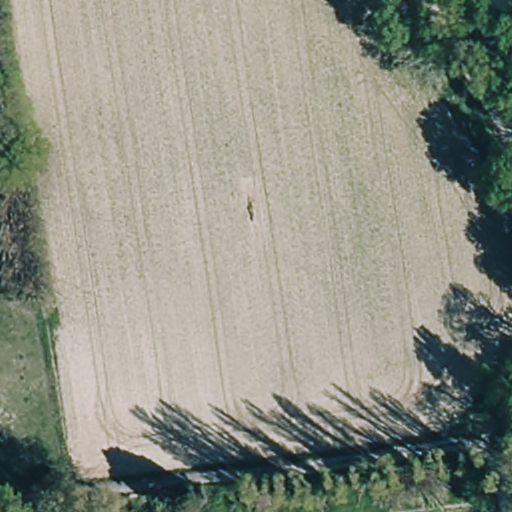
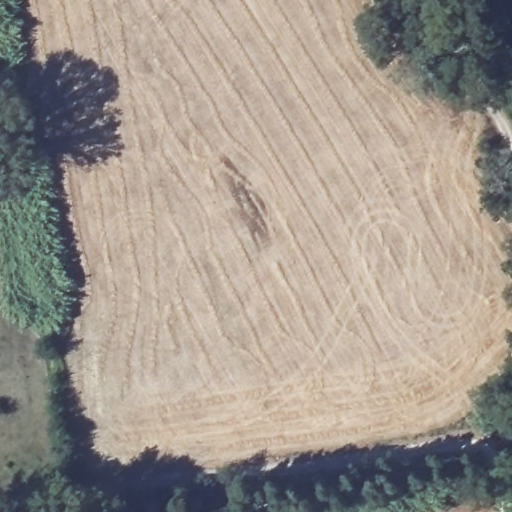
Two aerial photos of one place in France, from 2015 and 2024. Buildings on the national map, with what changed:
unchanged [(246,491),(266,489),(269,506),(247,508),(246,491)]
unchanged [(57,511),(57,512),(44,512),(44,511),(57,511)]

